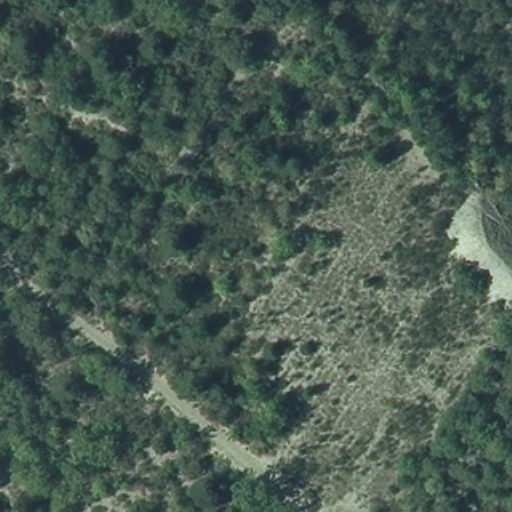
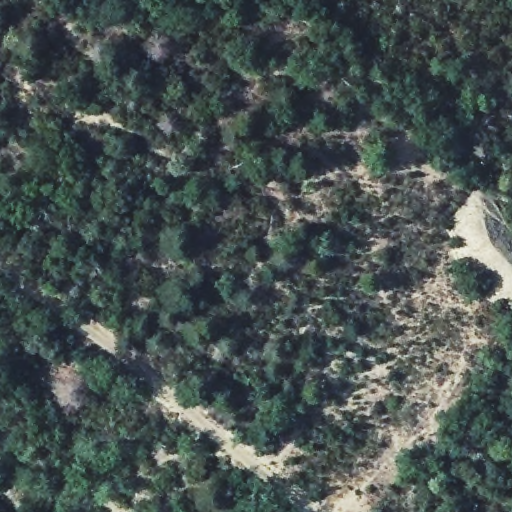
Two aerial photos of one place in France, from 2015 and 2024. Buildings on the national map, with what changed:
unchanged [(184,143),(202,153),(194,168),(175,158),(184,143)]

